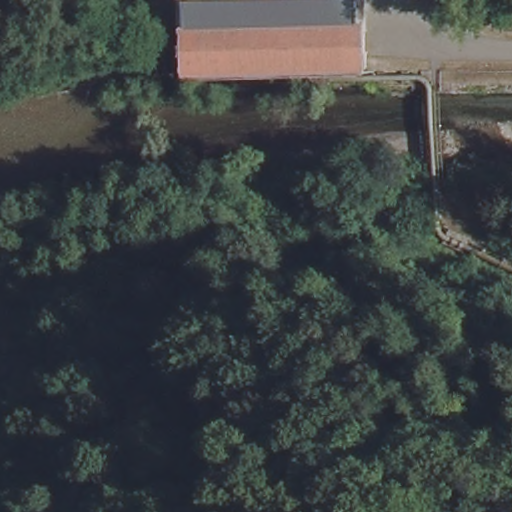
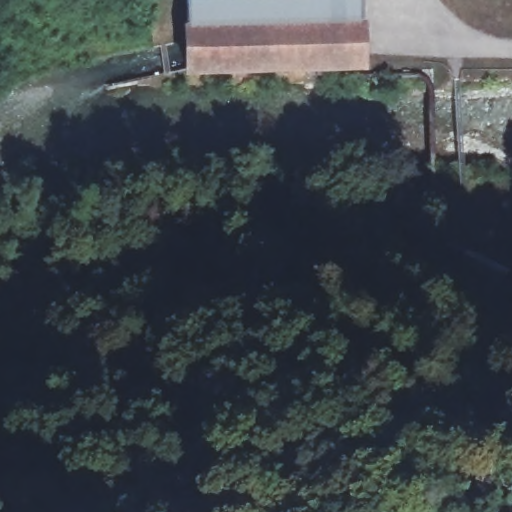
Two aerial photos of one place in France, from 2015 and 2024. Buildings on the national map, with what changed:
unchanged [(368,67),(190,71),(190,45),(191,0),(366,0),(368,67)]

